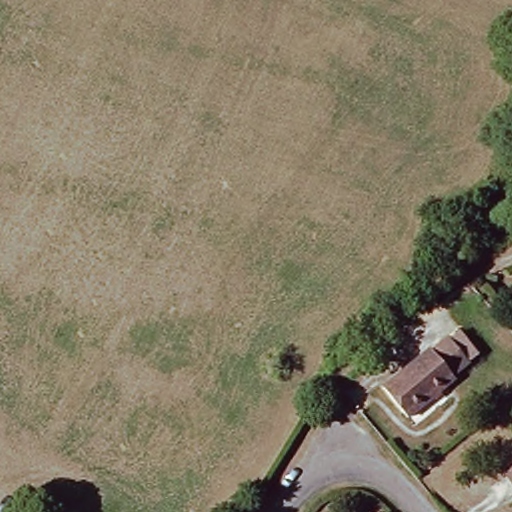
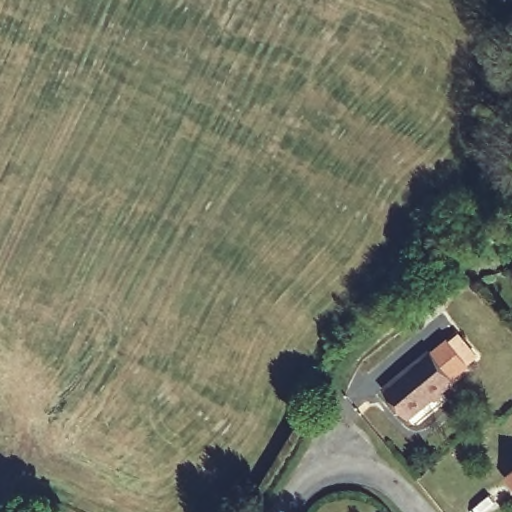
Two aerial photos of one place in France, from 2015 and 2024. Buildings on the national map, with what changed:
unchanged [(442,336),(462,360),(447,375),(451,378),(405,416),(381,389),(442,336)]
unchanged [(507,477),(512,474),(512,483),(507,477)]

